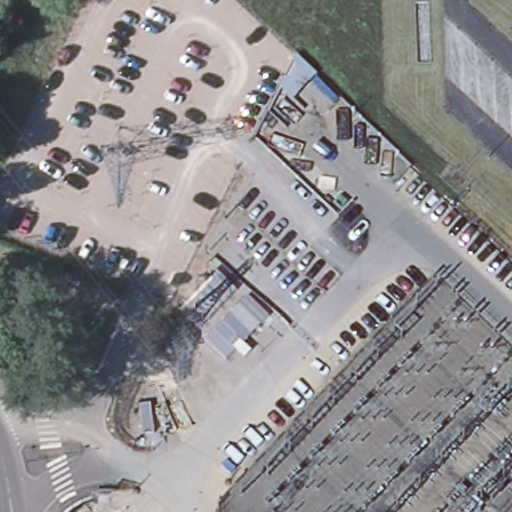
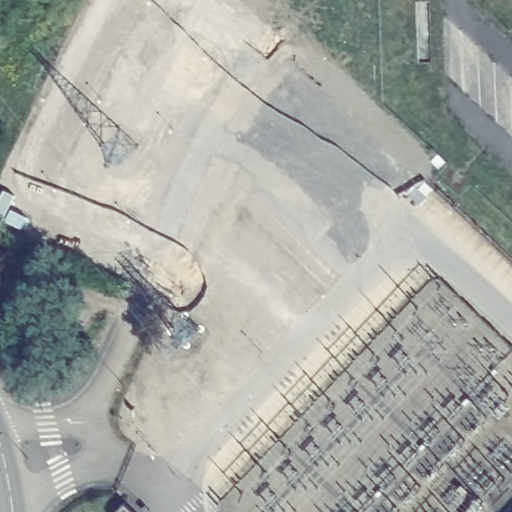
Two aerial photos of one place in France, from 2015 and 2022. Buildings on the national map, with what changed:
unchanged [(298,104),(280,89),(300,52),(321,76),(298,104)]

